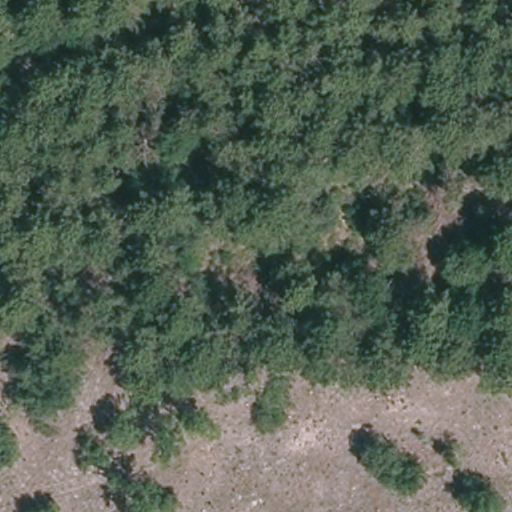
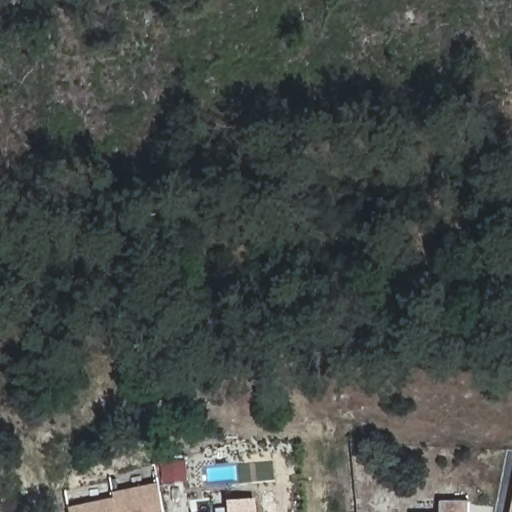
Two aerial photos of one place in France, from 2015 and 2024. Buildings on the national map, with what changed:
new [(161,485),(166,512),(119,512),(115,494),(161,485)]
new [(68,508),(116,498),(119,512),(69,512),(68,508)]
new [(443,502),(468,502),(468,512),(443,512),(443,502)]
new [(235,506),(257,504),(258,512),(236,512),(235,506)]

